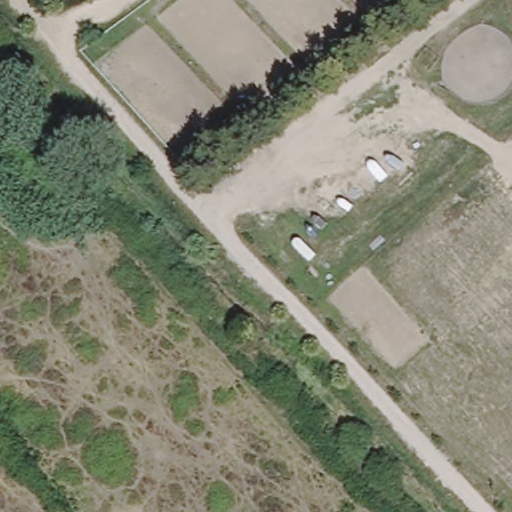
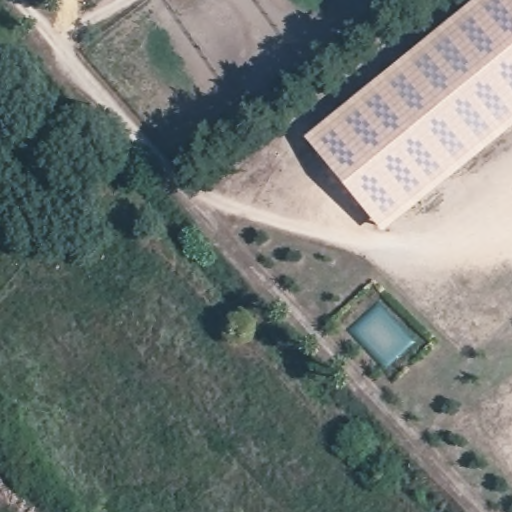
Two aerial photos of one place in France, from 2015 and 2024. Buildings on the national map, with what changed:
new [(306,136),(472,0),(512,0),(512,127),(384,233),(306,136)]

